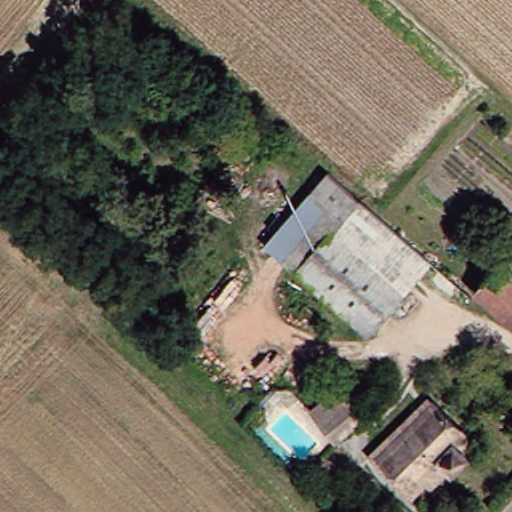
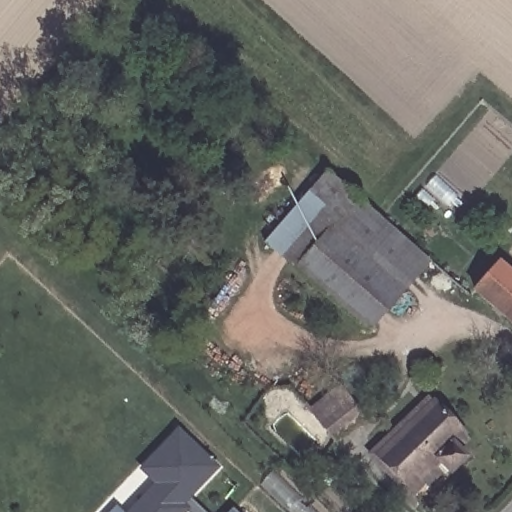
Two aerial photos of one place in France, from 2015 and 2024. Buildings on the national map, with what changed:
unchanged [(328,163),(356,188),(326,223),(290,264),(262,240),(328,163)]
unchanged [(356,188),(428,252),(399,287),(326,223),(356,188)]
unchanged [(399,287),(363,329),(290,264),(326,223),(399,287)]
unchanged [(478,283),(502,256),(512,264),(512,313),(478,283)]
unchanged [(317,410),(342,387),(356,401),(360,405),(335,429),(332,426),(317,410)]
unchanged [(418,473),(410,484),(376,454),(425,398),(458,429),(450,439),(462,450),(448,465),(431,484),(418,473)]
new [(184,512),(131,512),(157,483),(142,468),(179,429),(217,465),(189,495),(206,512),(190,512),(187,509),(184,512)]
new [(124,512),(110,512),(116,505),(124,512)]
new [(230,512),(235,507),(240,512),(230,512)]

